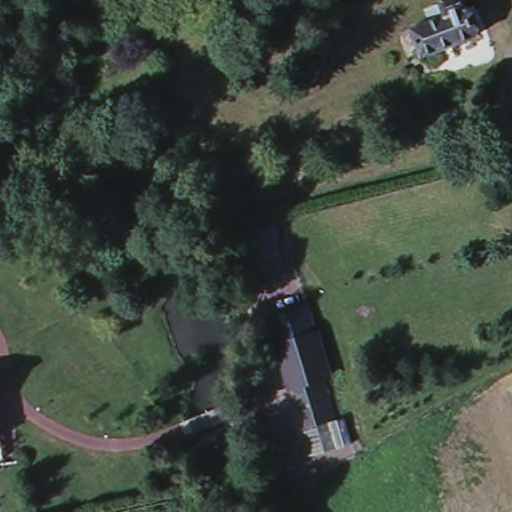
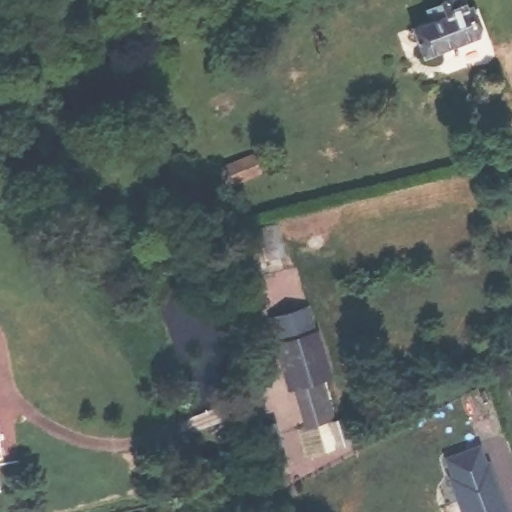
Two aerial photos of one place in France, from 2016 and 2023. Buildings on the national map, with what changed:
unchanged [(469,40),(414,60),(402,35),(422,29),(417,16),(454,1),(469,40)]
unchanged [(200,117),(226,109),(230,128),(205,134),(200,117)]
new [(226,166),(252,159),(256,177),(231,183),(226,166)]
unchanged [(266,315),(308,305),(334,377),(324,380),(337,424),(328,427),(334,453),(308,459),(266,315)]
new [(445,479),(438,460),(470,449),(477,467),(480,466),(496,512),(453,512),(442,480),(445,479)]

